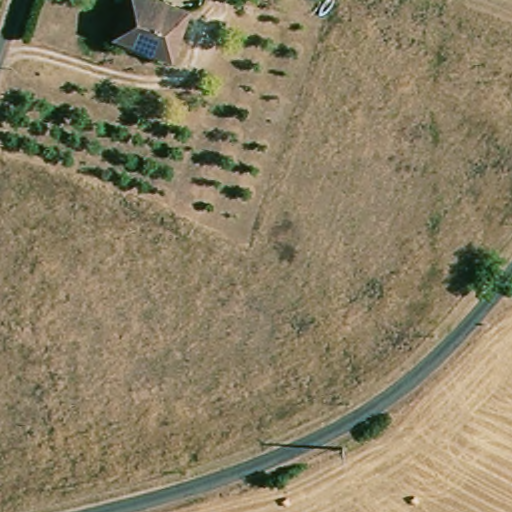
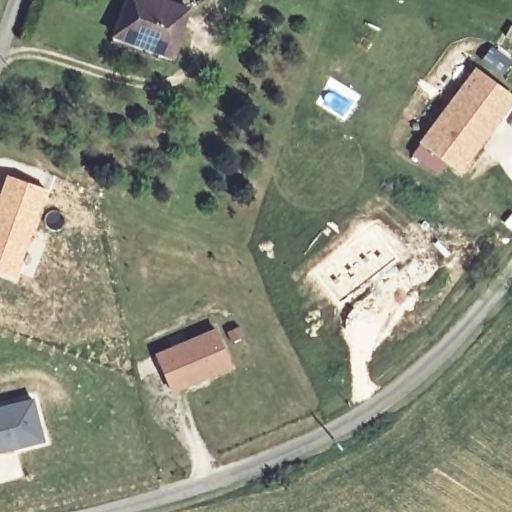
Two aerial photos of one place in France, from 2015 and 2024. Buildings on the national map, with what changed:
unchanged [(118,35),(130,0),(161,0),(193,11),(180,47),(177,56),(148,46),(118,35)]
new [(512,94),(512,101),(462,170),(422,141),(476,68),(512,94)]
new [(5,173),(48,190),(35,230),(16,275),(0,269),(0,188),(5,173)]
new [(218,330),(232,367),(173,390),(158,353),(218,330)]
new [(33,396),(44,441),(0,452),(0,404),(33,396)]

